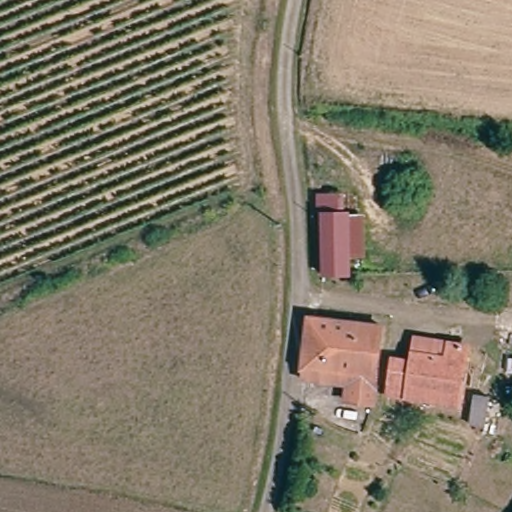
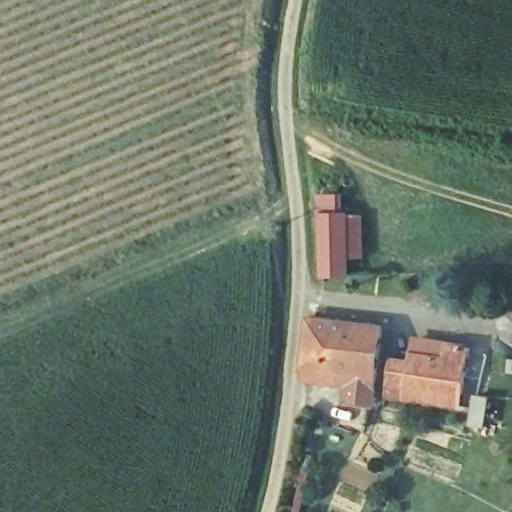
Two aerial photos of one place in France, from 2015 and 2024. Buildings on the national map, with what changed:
unchanged [(355,275),(329,275),(333,211),(357,211),(355,275)]
unchanged [(311,371),(312,366),(315,320),(384,327),(379,372),(311,371)]
unchanged [(468,375),(464,402),(436,401),(387,397),(389,362),(415,365),(417,355),(418,340),(446,341),(472,342),(468,375)]
unchanged [(376,396),(374,411),(351,410),(352,378),(310,376),(311,371),(379,372),(376,396)]

